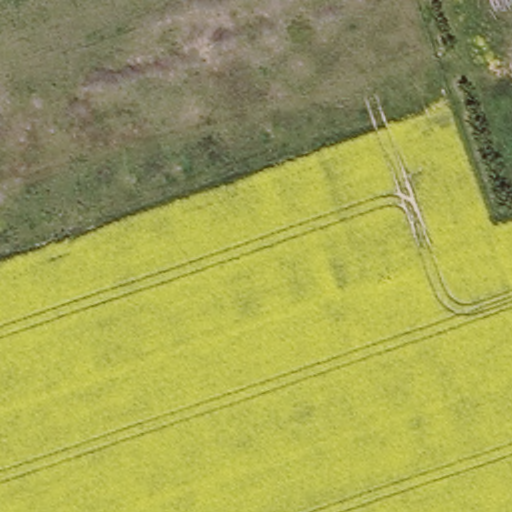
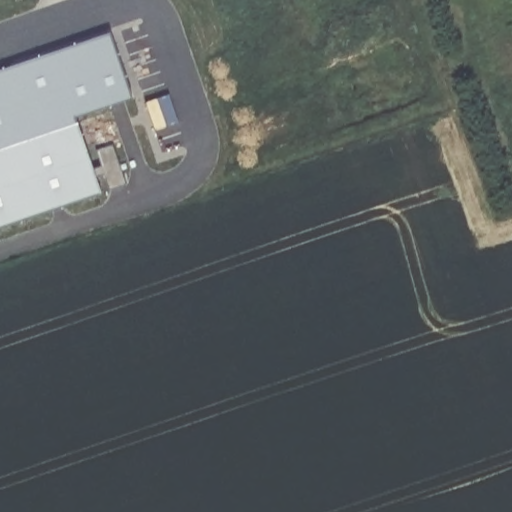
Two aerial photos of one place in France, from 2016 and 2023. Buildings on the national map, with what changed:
new [(132,98),(75,118),(85,150),(112,144),(125,184),(0,227),(0,71),(110,34),(132,98)]

